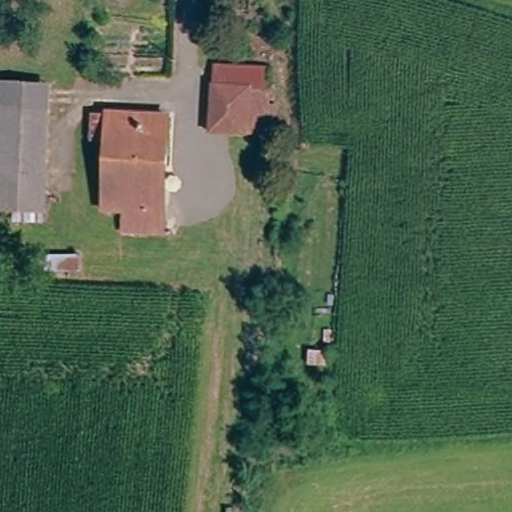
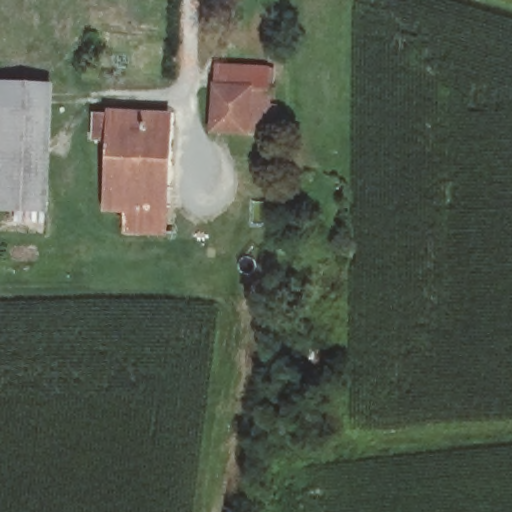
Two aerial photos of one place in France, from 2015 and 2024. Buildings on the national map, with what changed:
unchanged [(270,111),(268,133),(210,133),(212,69),(263,69),(270,111)]
unchanged [(48,212),(0,211),(0,79),(50,80),(48,212)]
unchanged [(124,229),(125,212),(105,210),(107,143),(91,141),(93,114),(109,115),(109,113),(166,115),(165,213),(164,232),(124,229)]

